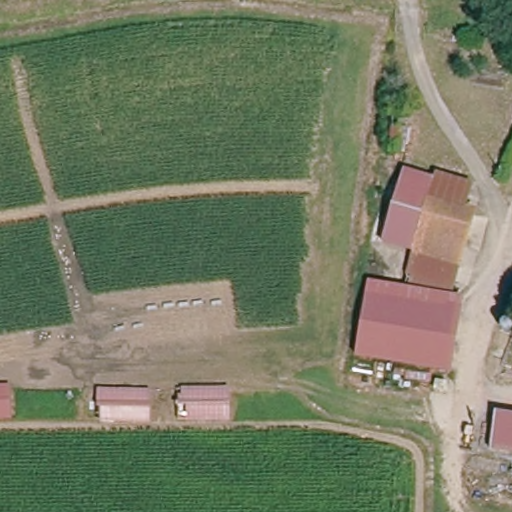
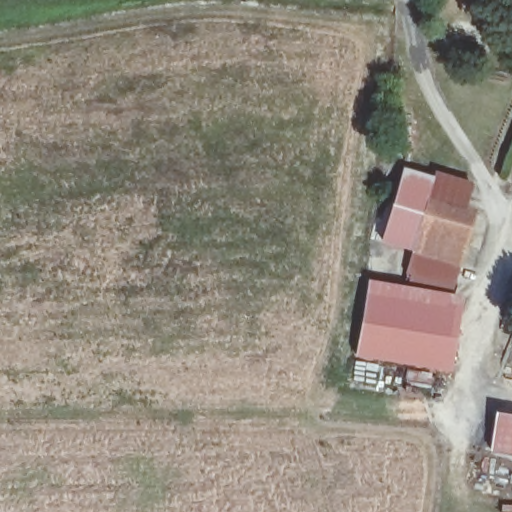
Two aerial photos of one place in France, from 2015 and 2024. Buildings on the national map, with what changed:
unchanged [(382,235),(400,167),(434,176),(435,171),(467,180),(462,203),(428,195),(416,243),(382,235)]
unchanged [(428,195),(462,203),(470,206),(459,254),(416,243),(428,195)]
unchanged [(459,254),(451,292),(405,284),(416,243),(459,254)]
unchanged [(405,284),(451,292),(462,294),(451,368),(352,352),(367,279),(405,284)]
unchanged [(512,452),(492,449),(493,410),(512,413),(512,452)]

